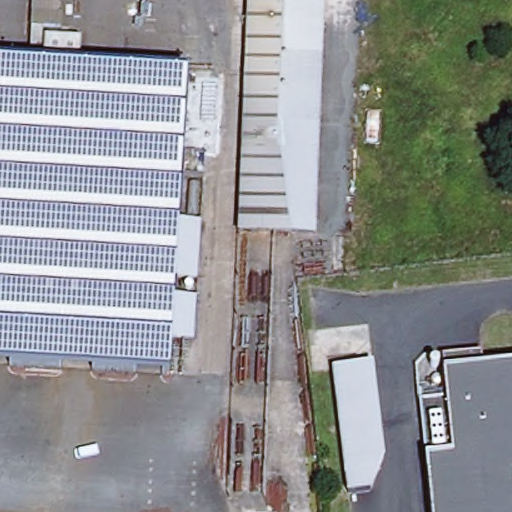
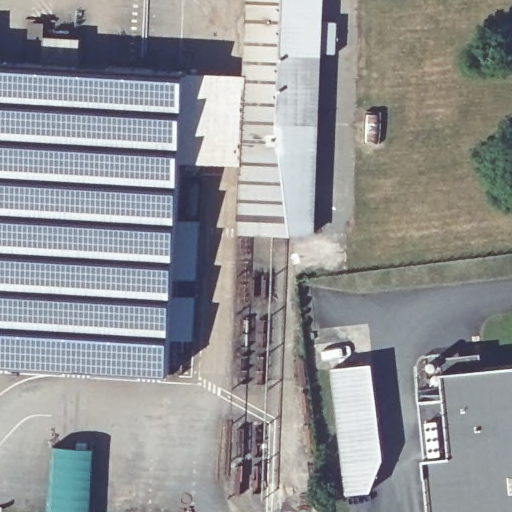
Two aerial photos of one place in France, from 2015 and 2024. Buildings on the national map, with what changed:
unchanged [(242,223),(254,0),(323,0),(316,226),(242,223)]
unchanged [(195,286),(177,286),(172,379),(0,367),(0,53),(191,66),(180,233),(198,234),(195,286)]
unchanged [(446,401),(443,376),(441,361),(480,356),(482,372),(512,368),(512,512),(433,512),(420,404),(446,401)]
unchanged [(332,367),(371,362),(381,450),(369,490),(346,492),(332,367)]
new [(95,447),(92,512),(50,512),(54,445),(95,447)]

